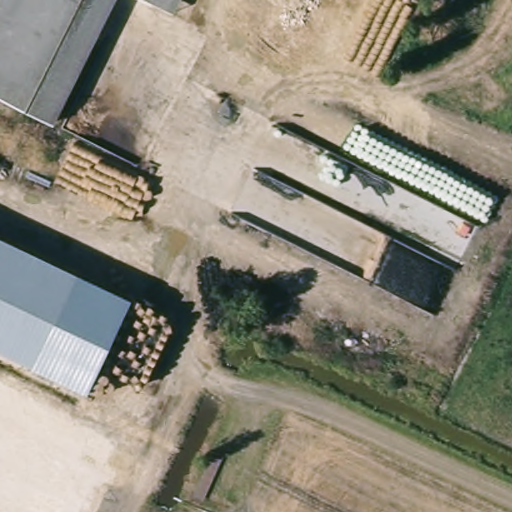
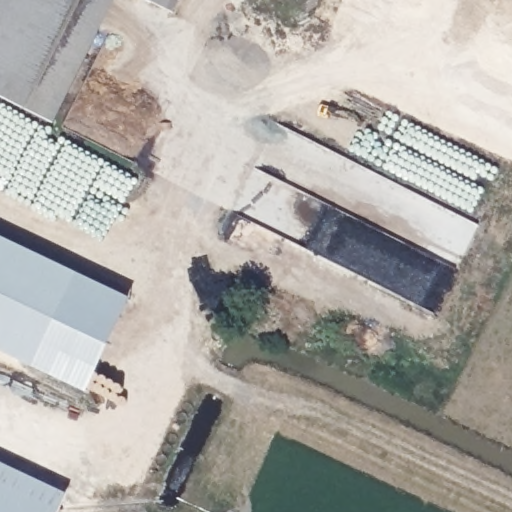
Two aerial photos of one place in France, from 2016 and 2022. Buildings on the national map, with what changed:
unchanged [(54,124),(0,98),(0,0),(113,0),(54,124)]
unchanged [(176,13),(148,0),(182,0),(176,13)]
unchanged [(64,275),(25,361),(0,349),(0,244),(64,275)]
unchanged [(130,300),(89,391),(25,361),(64,275),(130,300)]
new [(59,512),(0,512),(0,462),(67,494),(59,512)]

